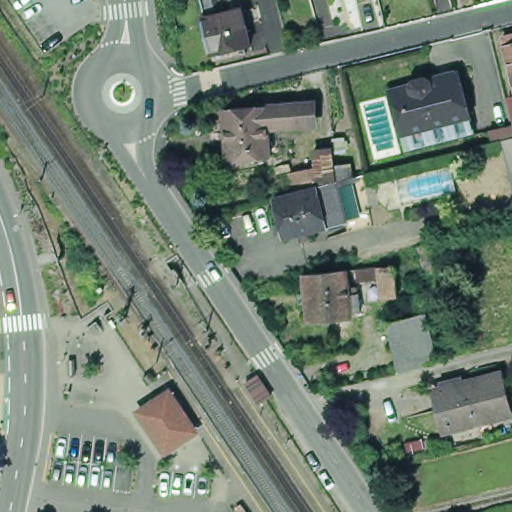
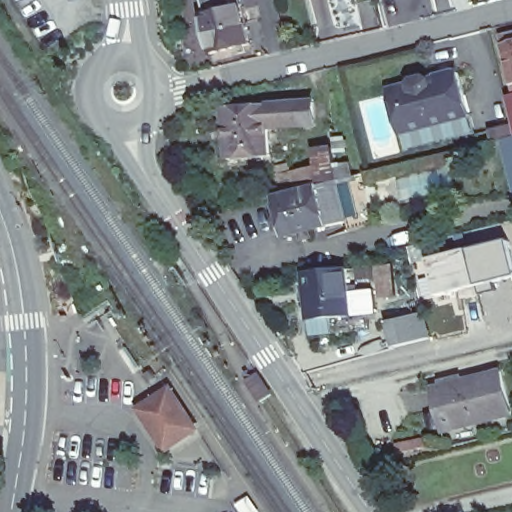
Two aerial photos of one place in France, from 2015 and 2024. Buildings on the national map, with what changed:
unchanged [(244,0),(207,10),(205,0),(243,0),(244,0)]
unchanged [(254,40),(247,40),(249,48),(233,51),(232,45),(214,49),(205,10),(207,10),(244,0),(254,40)]
unchanged [(510,81),(500,39),(500,32),(512,29),(512,87),(510,82),(510,81)]
unchanged [(392,83),(407,79),(410,75),(421,72),(426,74),(455,67),(465,110),(402,126),(392,83)]
unchanged [(512,111),(508,91),(512,90),(512,111)]
unchanged [(272,156),(228,159),(225,108),(287,103),(317,101),(318,117),(288,119),(270,120),(272,156)]
unchanged [(512,129),(512,182),(500,131),(512,129)]
unchanged [(317,187),(282,196),(278,177),(315,169),(317,187)]
unchanged [(294,245),(292,238),(285,240),(285,238),(277,237),(275,225),(282,221),(277,202),(319,191),(317,187),(337,183),(340,196),(347,224),(329,229),(309,234),(310,240),(294,245)]
new [(512,247),(512,278),(437,297),(427,258),(510,238),(512,247)]
new [(422,242),(427,260),(413,264),(408,246),(422,242)]
unchanged [(392,300),(377,302),(375,282),(352,282),(352,273),(388,270),(392,300)]
unchanged [(356,315),(345,314),(346,319),(305,323),(300,277),(342,273),(344,289),(352,288),(356,315)]
unchanged [(442,359),(404,368),(393,321),(405,318),(423,313),(429,312),(442,359)]
unchanged [(277,399),(266,407),(245,376),(256,369),(277,399)]
unchanged [(512,398),(512,417),(449,433),(438,391),(505,374),(512,398)]
unchanged [(165,390),(192,430),(164,448),(137,409),(157,396),(165,390)]

